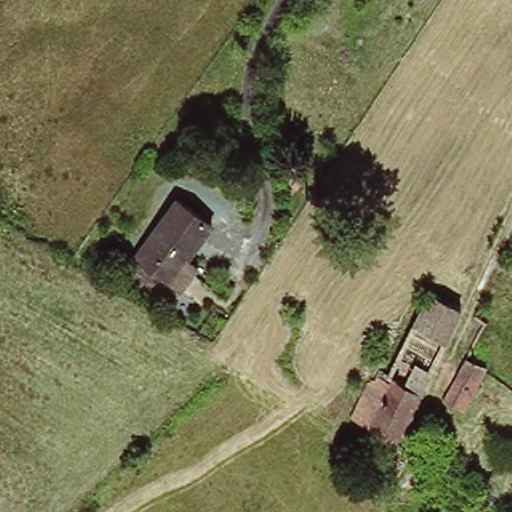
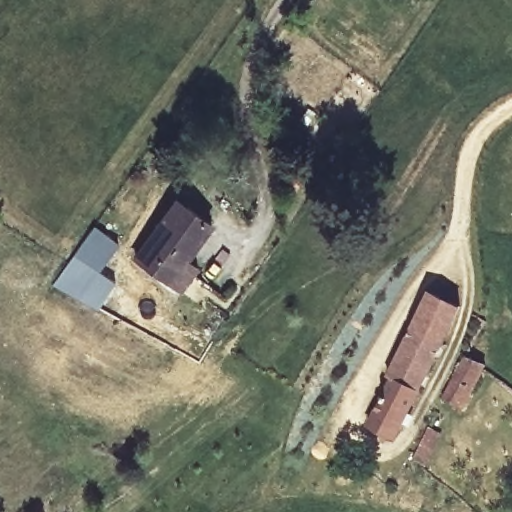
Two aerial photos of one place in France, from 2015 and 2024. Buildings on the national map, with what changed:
unchanged [(136,265),(176,202),(211,225),(177,277),(165,283),(136,265)]
new [(93,225),(119,244),(100,271),(115,282),(96,311),(52,285),(93,225)]
unchanged [(396,441),(369,428),(385,395),(372,388),(380,371),(388,375),(429,295),(461,310),(396,441)]
unchanged [(470,406),(449,395),(471,354),(491,366),(470,406)]

